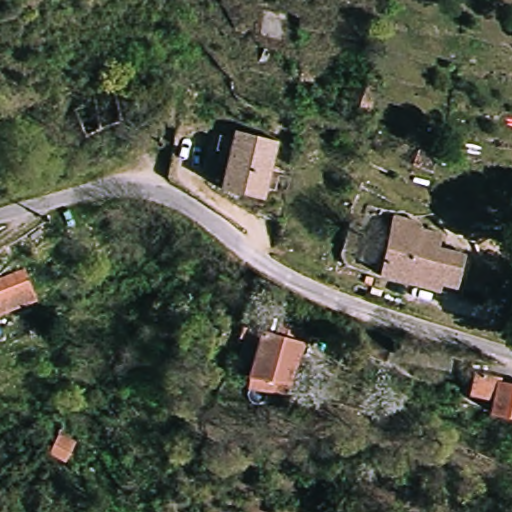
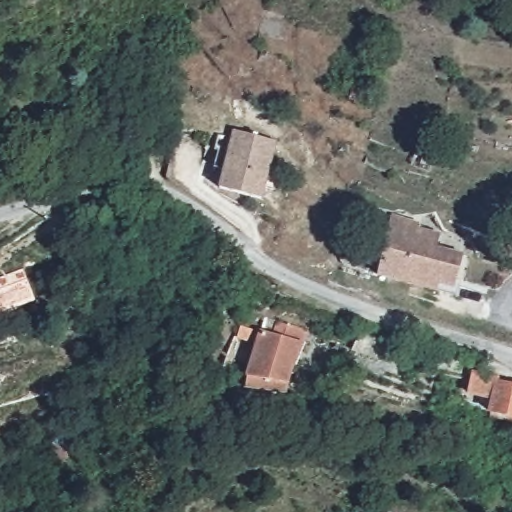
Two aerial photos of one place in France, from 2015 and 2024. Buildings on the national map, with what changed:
unchanged [(365,120),(344,106),(355,85),(375,97),(365,120)]
unchanged [(277,172),(271,193),(268,207),(226,196),(230,177),(220,175),(230,135),(240,138),(282,149),(277,172)]
unchanged [(406,281),(375,275),(388,215),(420,222),(418,229),(442,235),(440,246),(466,254),(464,260),(455,293),(406,281)]
unchanged [(33,300),(0,313),(0,275),(21,267),(33,300)]
unchanged [(286,398),(234,382),(243,353),(219,345),(228,307),(304,330),(286,398)]
unchanged [(391,339),(384,363),(350,353),(357,327),(391,339)]
unchanged [(486,415),(492,392),(472,386),(477,370),(495,376),(492,387),(512,393),(512,422),(486,415)]

